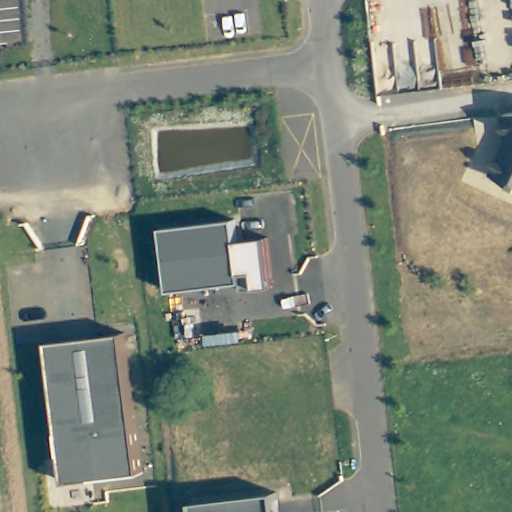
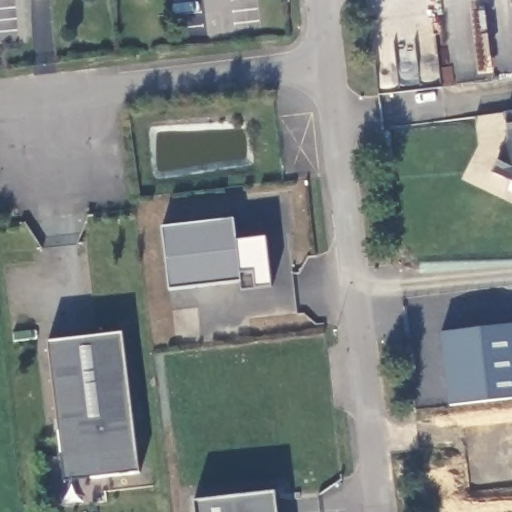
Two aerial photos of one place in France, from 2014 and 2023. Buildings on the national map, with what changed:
unchanged [(508,117),(512,116),(512,140),(508,117)]
unchanged [(505,154),(512,153),(512,182),(495,173),(505,154)]
unchanged [(233,220),(235,240),(264,238),(270,287),(254,289),(239,290),(239,284),(169,291),(161,228),(233,220)]
unchanged [(56,329),(132,319),(149,461),(73,470),(56,329)]
new [(447,406),(439,333),(512,323),(512,397),(447,406)]
unchanged [(273,493),(276,512),(193,512),(191,501),(273,493)]

